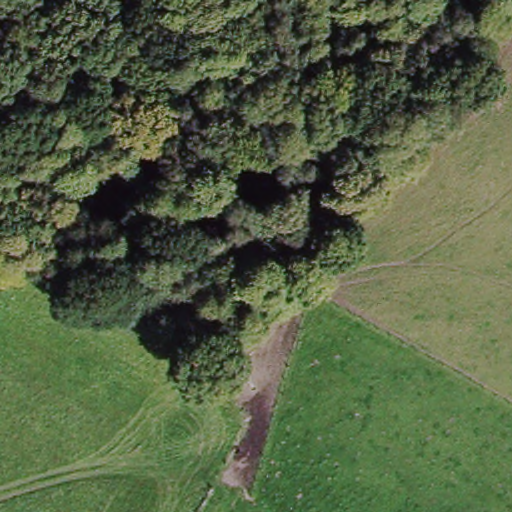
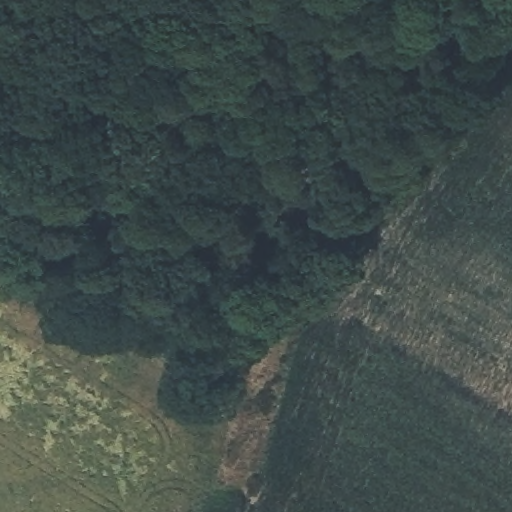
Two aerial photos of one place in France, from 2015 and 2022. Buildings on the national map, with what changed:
[]

